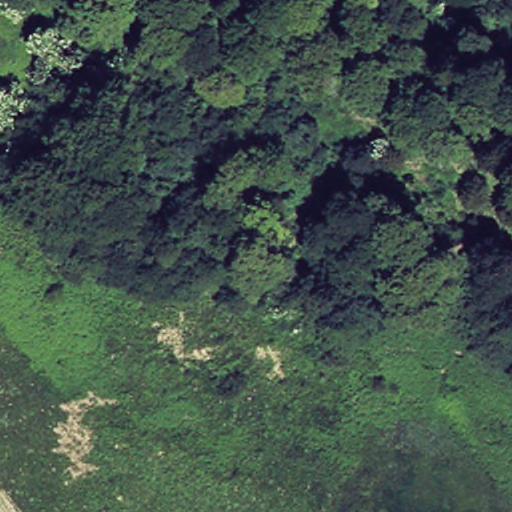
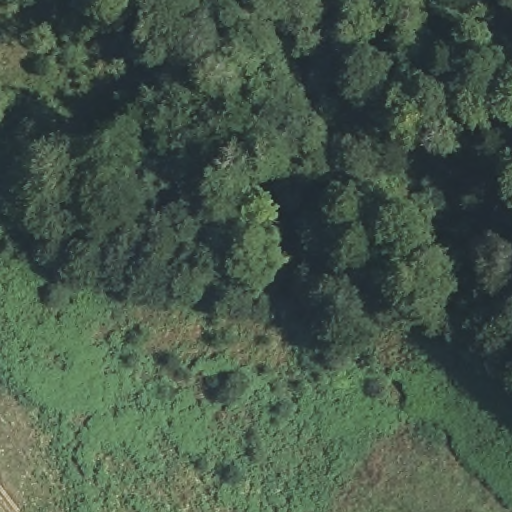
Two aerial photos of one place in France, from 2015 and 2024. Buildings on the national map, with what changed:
unchanged [(61,96),(36,99),(35,69),(61,68),(61,96)]

